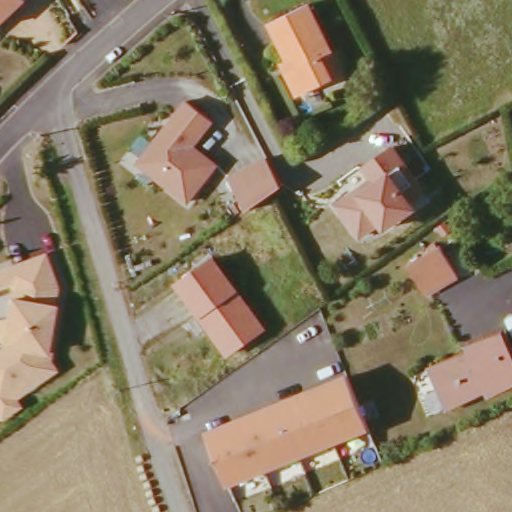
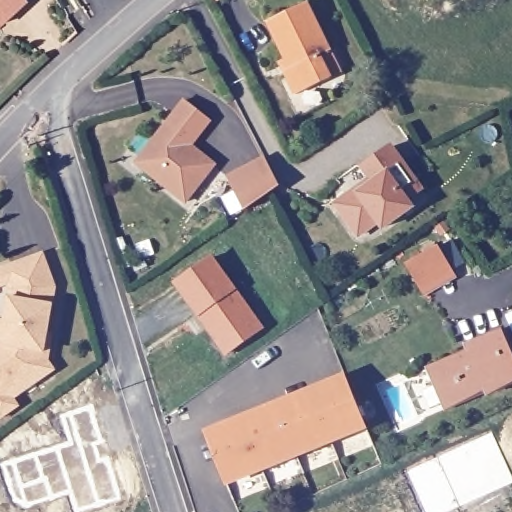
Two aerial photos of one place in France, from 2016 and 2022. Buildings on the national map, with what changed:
unchanged [(0,26),(0,0),(13,0),(20,8),(0,26)]
unchanged [(277,25),(312,2),(342,49),(334,55),(345,71),(313,92),(298,69),(302,66),(277,25)]
unchanged [(138,163),(186,100),(212,121),(193,146),(217,165),(187,202),(138,163)]
unchanged [(338,207),(350,199),(340,184),(361,169),(365,172),(397,152),(424,194),(410,204),(416,213),(390,229),(387,223),(367,235),(359,240),(338,207)]
unchanged [(262,156),(282,184),(280,186),(270,192),(246,209),(227,179),(262,156)]
unchanged [(412,268),(440,250),(457,280),(429,297),(412,268)]
unchanged [(10,291),(8,285),(0,288),(0,271),(42,256),(55,289),(46,335),(50,336),(45,363),(52,371),(12,400),(17,408),(0,420),(0,322),(5,322),(10,291)]
unchanged [(255,333),(230,351),(179,281),(212,256),(252,308),(265,325),(255,333)]
unchanged [(464,356),(470,362),(480,358),(479,346),(510,334),(512,339),(512,390),(496,396),(492,386),(480,390),(482,396),(452,408),(436,367),(464,356)]
unchanged [(350,376),(369,427),(234,479),(212,428),(350,376)]
new [(44,483),(19,491),(11,465),(70,447),(62,419),(90,411),(100,445),(94,447),(98,463),(106,461),(118,501),(82,512),(74,512),(69,496),(50,501),(44,483)]
new [(492,436),(502,459),(485,466),(494,487),(457,503),(459,509),(453,512),(426,512),(408,473),(492,436)]

